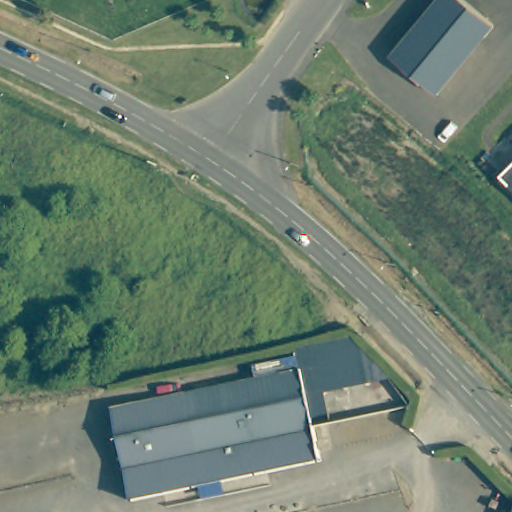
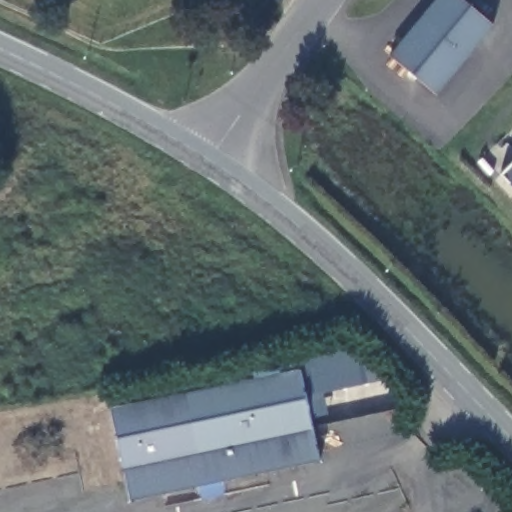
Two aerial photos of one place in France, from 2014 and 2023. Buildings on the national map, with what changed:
unchanged [(430,0),(465,0),(490,24),(428,89),(385,47),(430,0)]
unchanged [(500,175),(512,164),(512,186),(500,175)]
unchanged [(127,414),(295,372),(315,458),(148,500),(127,414)]

